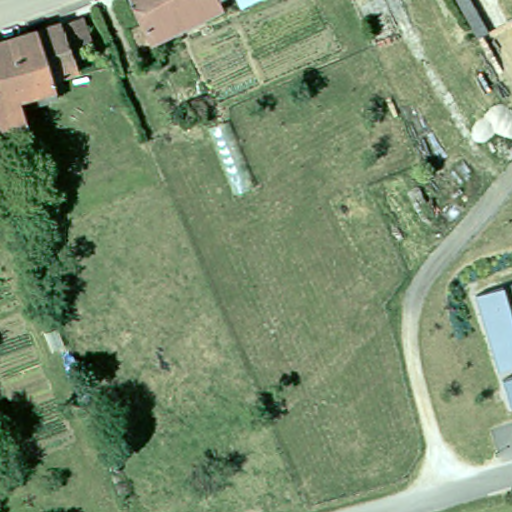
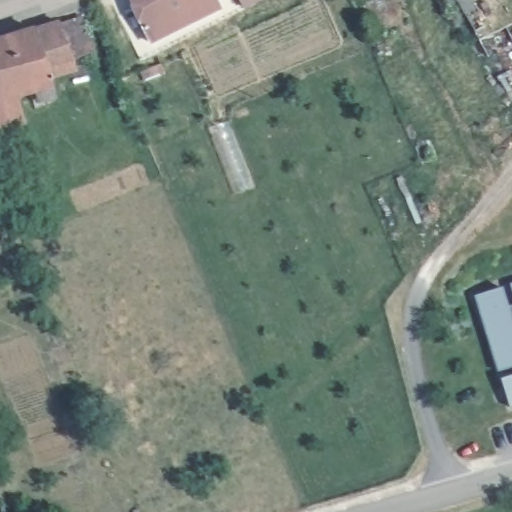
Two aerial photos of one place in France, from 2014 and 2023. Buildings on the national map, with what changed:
unchanged [(220,0),(221,2),(150,37),(131,0),(220,0)]
unchanged [(31,25),(55,18),(71,64),(46,73),(31,25)]
unchanged [(46,73),(49,81),(13,93),(20,118),(0,123),(0,34),(31,25),(46,73)]
unchanged [(510,286),(512,286),(512,291),(510,286)]
unchanged [(502,289),(508,309),(512,308),(512,373),(502,376),(477,296),(502,289)]
unchanged [(505,384),(512,382),(512,409),(505,384)]

